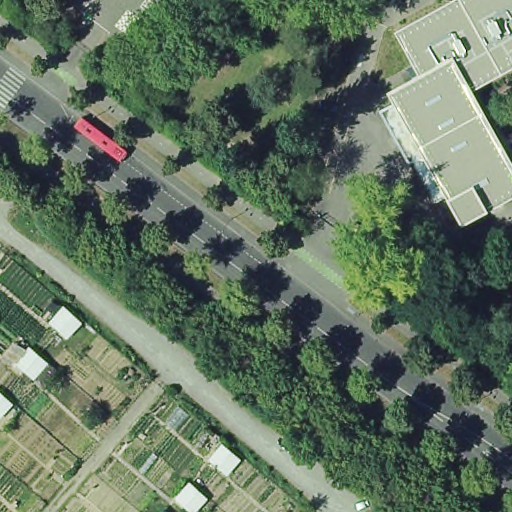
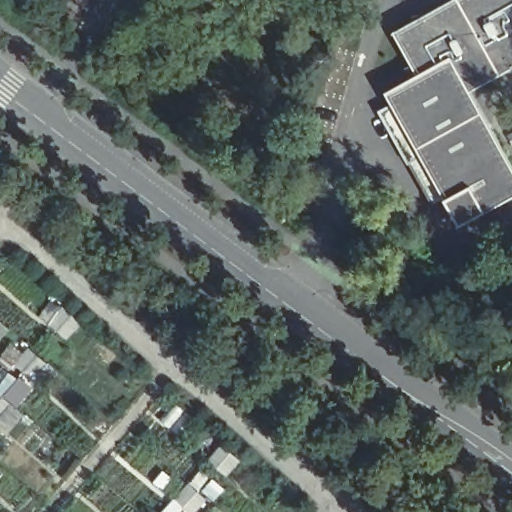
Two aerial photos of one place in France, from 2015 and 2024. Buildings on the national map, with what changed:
unchanged [(458,59),(455,60),(425,76),(402,32),(438,13),(462,0),(512,0),(512,71),(477,91),(458,59)]
unchanged [(425,76),(455,60),(458,59),(477,91),(512,156),(512,202),(505,205),(468,225),(452,197),(429,155),(415,163),(386,111),(400,104),(395,94),(395,93),(425,76)]
unchanged [(60,330),(52,323),(58,316),(65,308),(72,314),(81,322),(74,329),(67,337),(60,330)]
unchanged [(25,370),(17,364),(23,356),(30,348),(38,355),(47,362),(40,370),(33,377),(25,370)]
unchanged [(3,396),(12,403),(5,411),(0,417),(0,393),(3,396)]
unchanged [(218,468),(210,460),(217,453),(223,445),(232,452),(240,460),(233,467),(227,475),(218,468)]
unchanged [(177,499),(183,492),(190,484),(198,491),(206,499),(200,506),(194,512),(190,512),(185,506),(177,499)]

